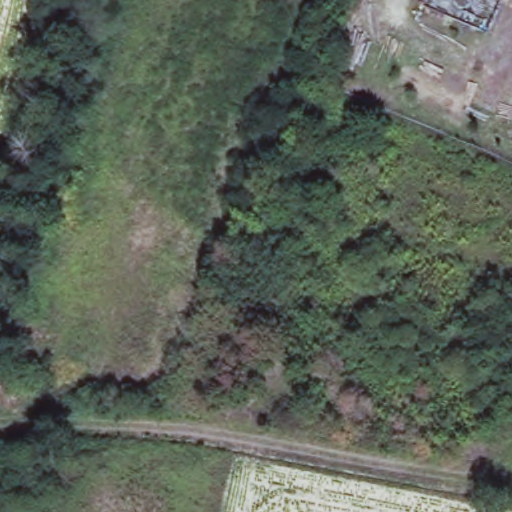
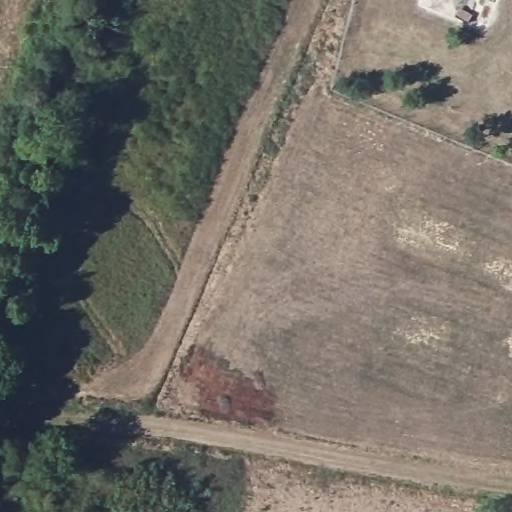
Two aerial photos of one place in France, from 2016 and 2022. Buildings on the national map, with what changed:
[]

